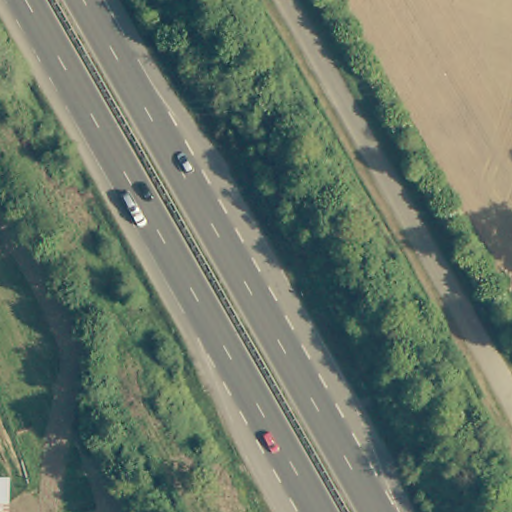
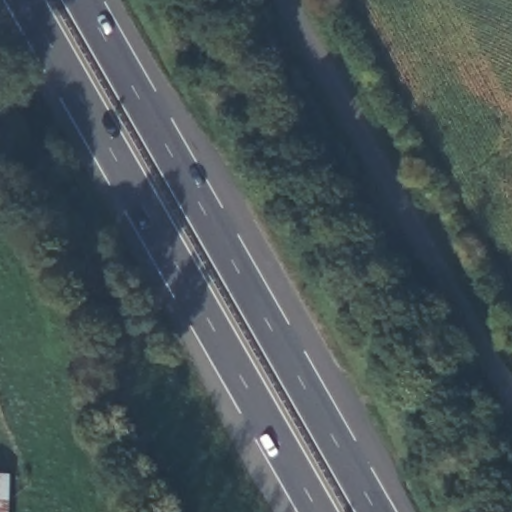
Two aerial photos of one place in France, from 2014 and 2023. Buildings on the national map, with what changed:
unchanged [(0,512),(0,478),(7,478),(6,512),(0,512)]

